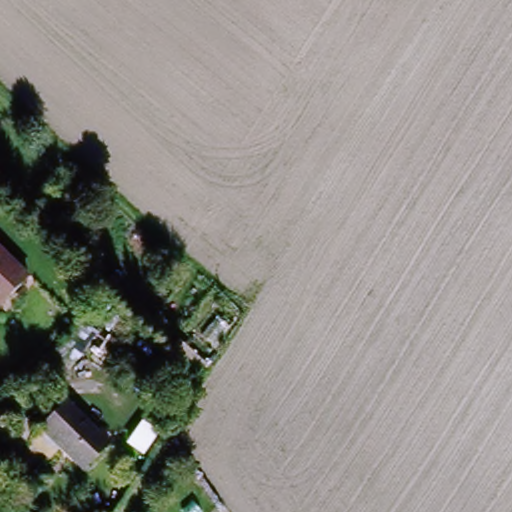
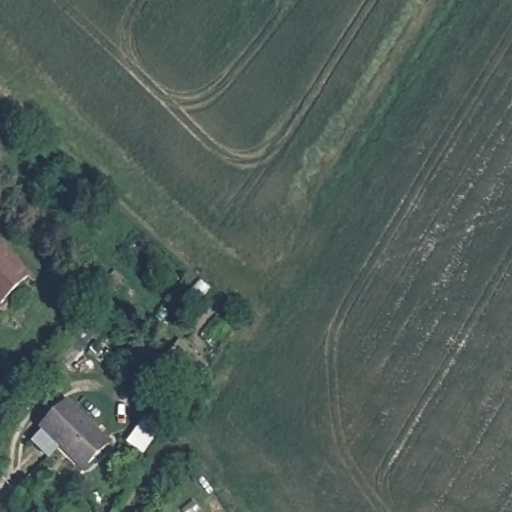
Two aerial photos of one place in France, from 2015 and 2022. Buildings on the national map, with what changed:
unchanged [(30,278),(1,306),(0,305),(0,246),(30,278)]
unchanged [(85,472),(45,432),(68,407),(110,448),(85,472)]

